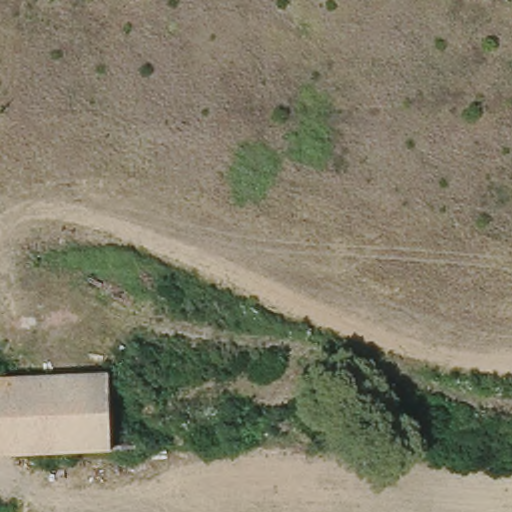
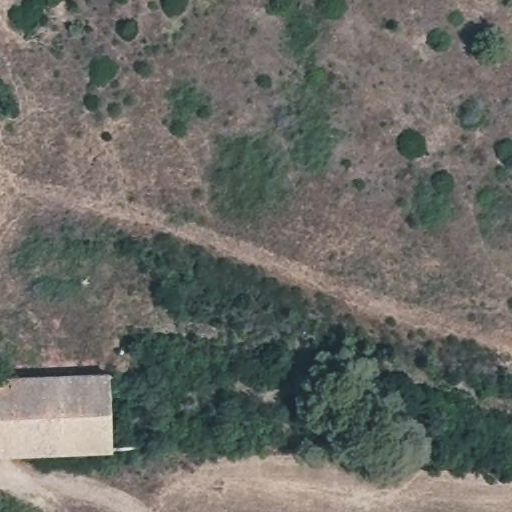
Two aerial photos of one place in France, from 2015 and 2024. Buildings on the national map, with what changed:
unchanged [(110,379),(114,453),(0,459),(0,384),(110,379)]

